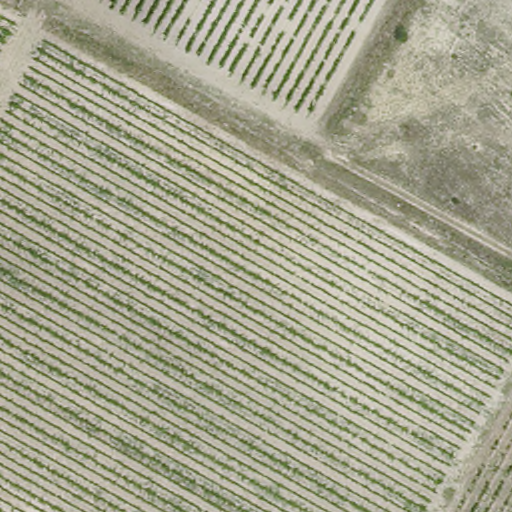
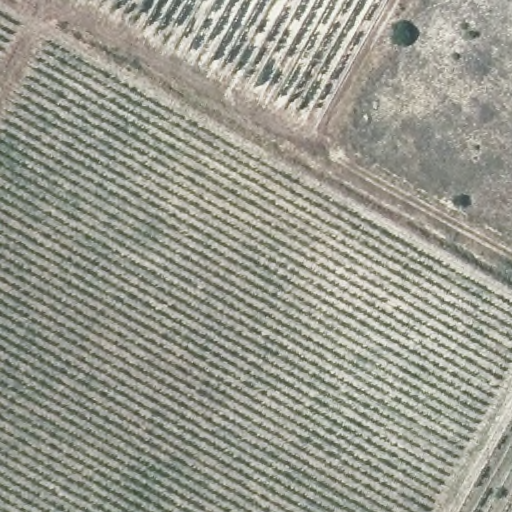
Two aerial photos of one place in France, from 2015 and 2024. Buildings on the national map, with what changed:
[]

